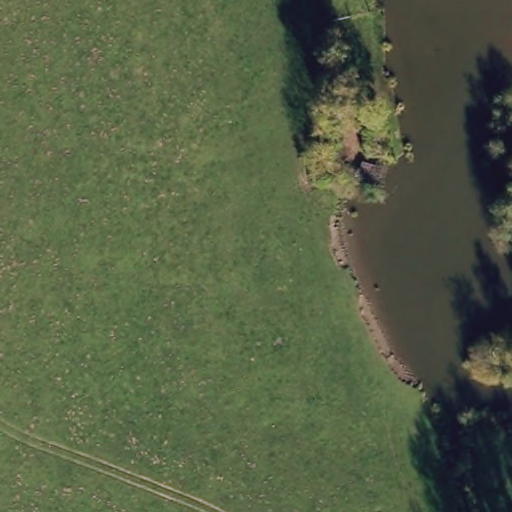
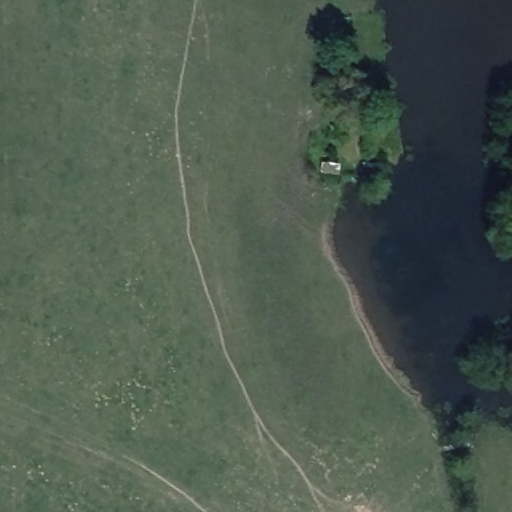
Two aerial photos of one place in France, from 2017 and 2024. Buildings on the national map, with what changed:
unchanged [(388,157),(360,157),(360,125),(387,125),(388,157)]

